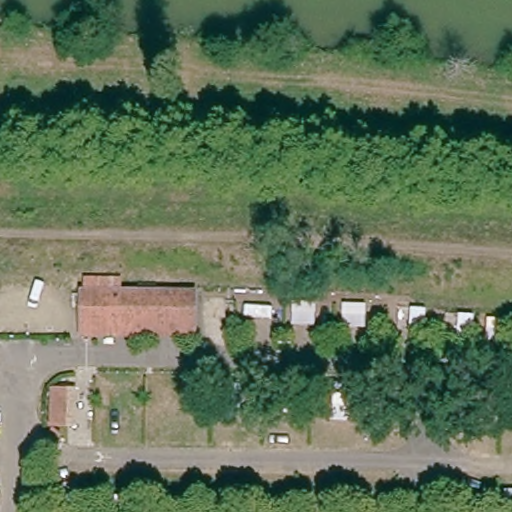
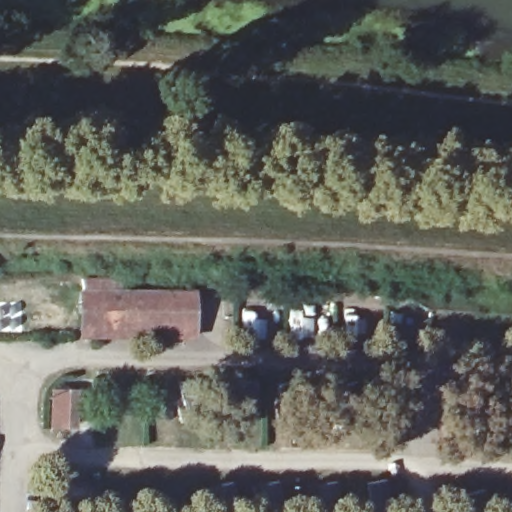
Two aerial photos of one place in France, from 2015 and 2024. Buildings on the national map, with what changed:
unchanged [(82,335),(82,330),(82,288),(193,289),(193,330),(192,336),(82,335)]
unchanged [(68,427),(51,426),(52,393),(69,393),(68,427)]

